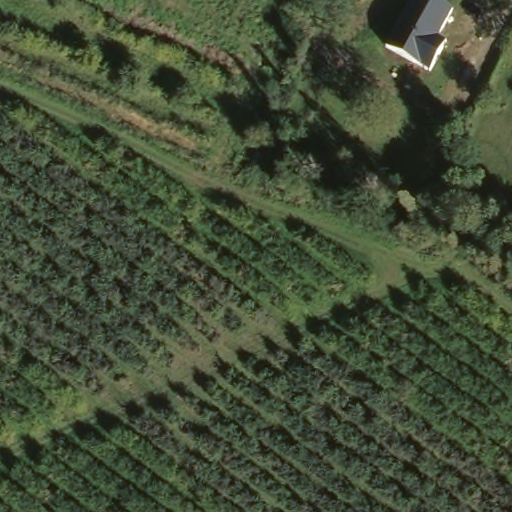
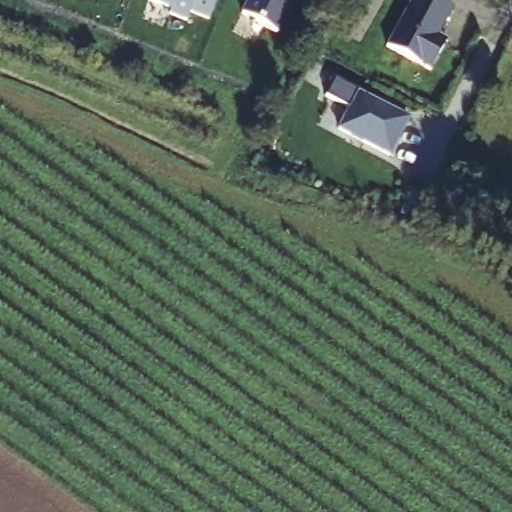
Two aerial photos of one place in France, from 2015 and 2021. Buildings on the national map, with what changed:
new [(191,12),(187,23),(171,16),(172,13),(149,4),(151,0),(216,0),(209,19),(191,12)]
new [(241,14),(248,0),(295,0),(279,33),(241,14)]
unchanged [(443,0),(454,6),(439,34),(449,39),(431,71),(386,45),(410,0),(443,0)]
new [(339,129),(350,107),(327,97),(337,78),(359,89),(358,93),(409,119),(391,155),(339,129)]

